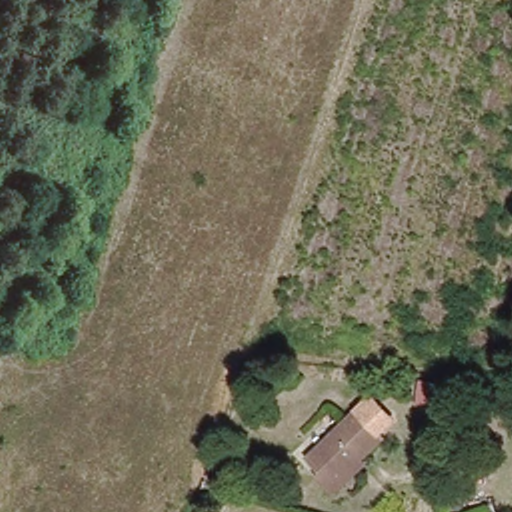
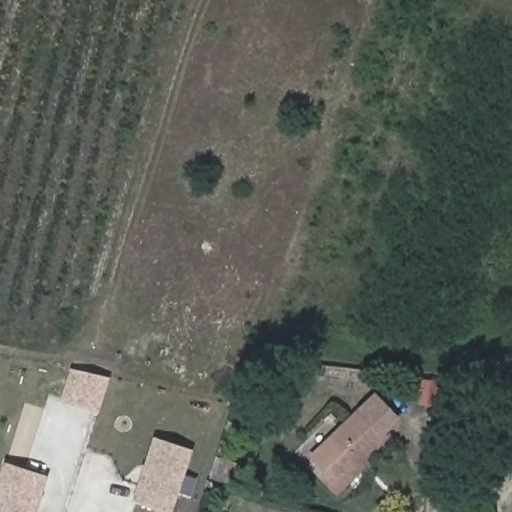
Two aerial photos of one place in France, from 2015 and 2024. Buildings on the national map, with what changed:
new [(110,380),(99,413),(63,402),(73,373),(110,380)]
unchanged [(329,467),(314,452),(360,403),(387,429),(345,473),(349,477),(339,488),(324,473),(329,467)]
new [(191,447),(170,511),(135,500),(156,436),(191,447)]
new [(37,512),(0,512),(0,489),(7,465),(47,478),(37,512)]

